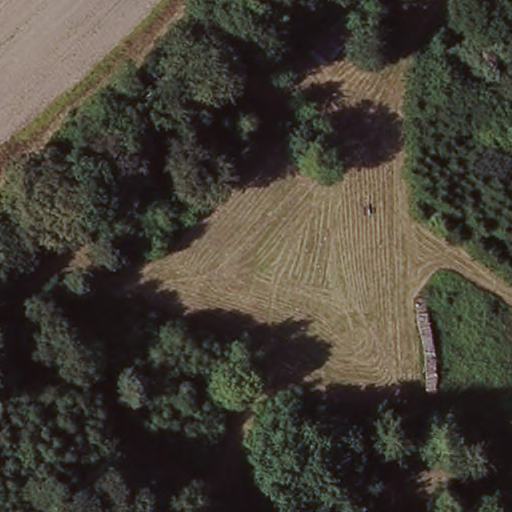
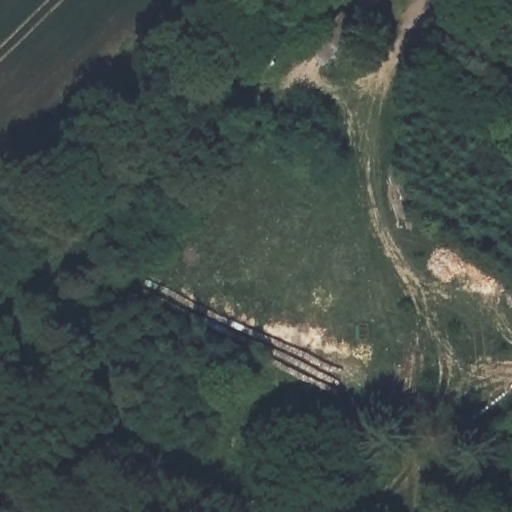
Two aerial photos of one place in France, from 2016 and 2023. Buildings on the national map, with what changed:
unchanged [(345,16),(361,31),(332,66),(313,53),(345,16)]

